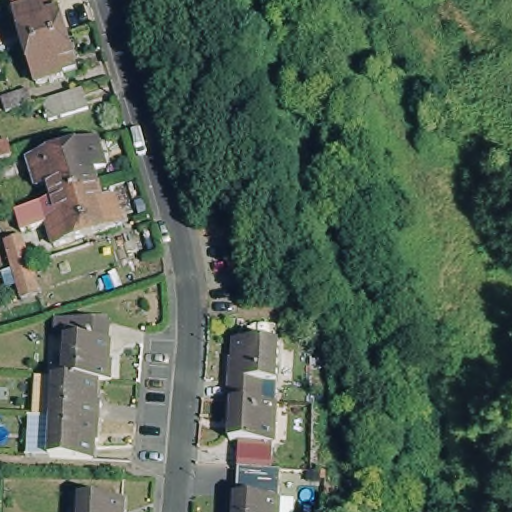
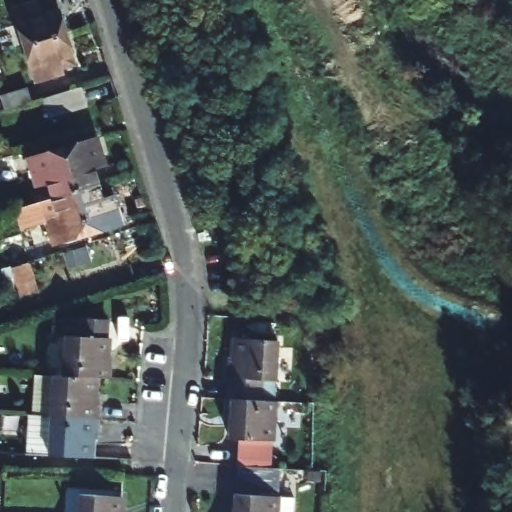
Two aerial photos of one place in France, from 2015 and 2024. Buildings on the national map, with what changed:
unchanged [(29,48),(18,16),(13,3),(21,0),(41,0),(44,5),(57,0),(59,7),(68,35),(29,48)]
unchanged [(68,35),(78,65),(61,70),(63,75),(42,81),(29,48),(68,35)]
unchanged [(84,89),(90,107),(52,120),(46,100),(84,89)]
unchanged [(30,91),(34,104),(7,112),(3,100),(30,91)]
unchanged [(99,137),(106,162),(95,165),(100,184),(76,190),(64,148),(99,137)]
unchanged [(0,179),(0,145),(7,143),(12,159),(17,175),(0,179)]
unchanged [(47,220),(20,227),(16,208),(53,196),(48,180),(37,183),(29,158),(64,148),(76,190),(89,232),(54,242),(47,220)]
unchanged [(100,184),(105,201),(117,197),(124,221),(89,232),(76,190),(100,184)]
unchanged [(2,237),(23,232),(39,290),(20,295),(2,237)]
unchanged [(67,335),(68,320),(106,321),(105,336),(109,337),(107,357),(111,357),(110,375),(96,374),(64,372),(66,334),(67,335)]
unchanged [(228,466),(229,460),(230,438),(222,438),(222,418),(217,417),(218,397),(219,378),(220,360),(226,360),(227,339),(269,342),(266,382),(253,381),(251,400),(265,400),(263,440),(262,461),(262,467),(228,466)]
unchanged [(31,410),(34,370),(54,371),(64,372),(96,374),(94,396),(99,396),(98,415),(97,436),(92,435),(91,453),(49,450),(51,411),(31,410)]
unchanged [(237,475),(237,469),(277,471),(277,478),(275,497),(236,495),(237,475)]
unchanged [(116,497),(115,512),(73,512),(75,493),(116,497)]
unchanged [(236,495),(275,497),(277,497),(276,512),(232,512),(234,495),(236,495)]

